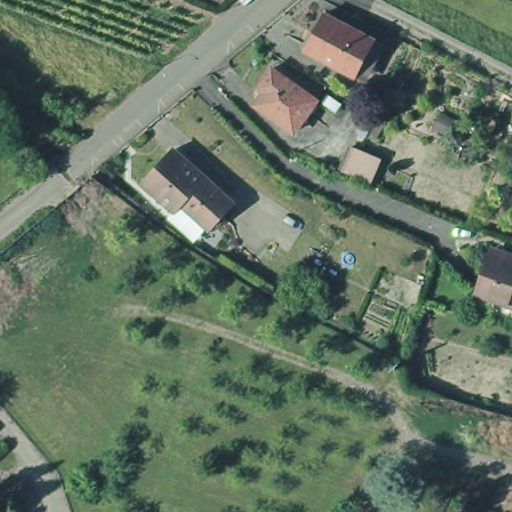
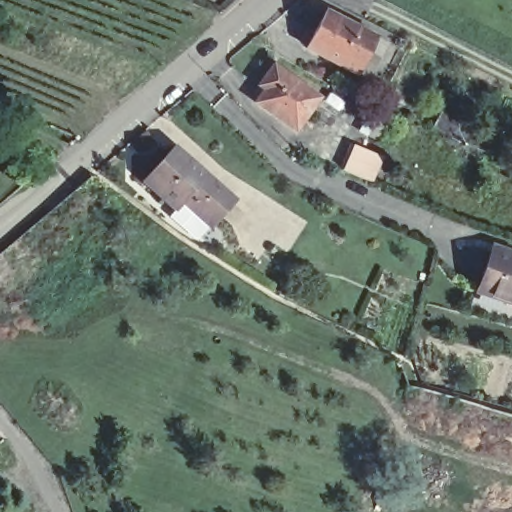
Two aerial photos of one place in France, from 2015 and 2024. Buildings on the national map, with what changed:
unchanged [(323,7),(374,34),(373,35),(382,40),(377,52),(367,47),(355,70),(304,42),(323,7)]
unchanged [(269,80),(262,76),(276,57),(322,89),(299,120),(260,94),(269,80)]
unchanged [(347,165),(357,140),(385,152),(375,177),(347,165)]
unchanged [(178,145),(237,197),(213,223),(185,197),(178,205),(148,177),(178,145)]
unchanged [(512,247),(512,252),(492,245),(493,240),(512,247)]
unchanged [(477,288),(485,262),(491,246),(512,254),(512,300),(477,288)]

